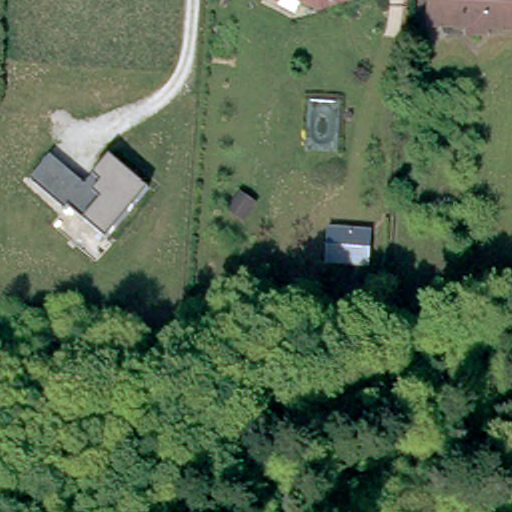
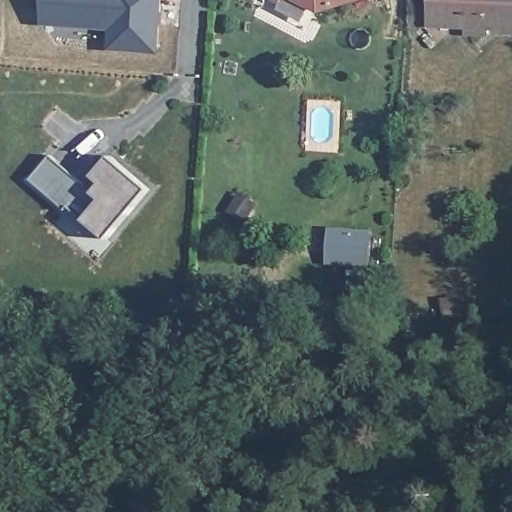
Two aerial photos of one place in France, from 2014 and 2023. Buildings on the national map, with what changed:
new [(125,44),(125,50),(110,48),(111,29),(42,24),(44,0),(161,0),(157,46),(125,44)]
unchanged [(289,0),(362,0),(315,14),(289,0)]
unchanged [(487,22),(487,29),(465,28),(465,21),(440,20),(427,7),(428,0),(512,0),(512,24),(487,22)]
demolished [(232,175),(212,174),(213,154),(233,155),(232,175)]
unchanged [(107,239),(87,220),(70,204),(67,209),(29,180),(49,157),(83,185),(93,175),(110,159),(150,190),(107,239)]
new [(327,231),(371,233),(370,264),(326,261),(327,231)]

